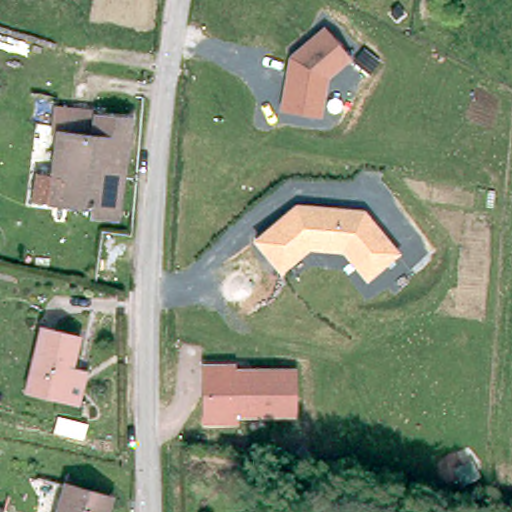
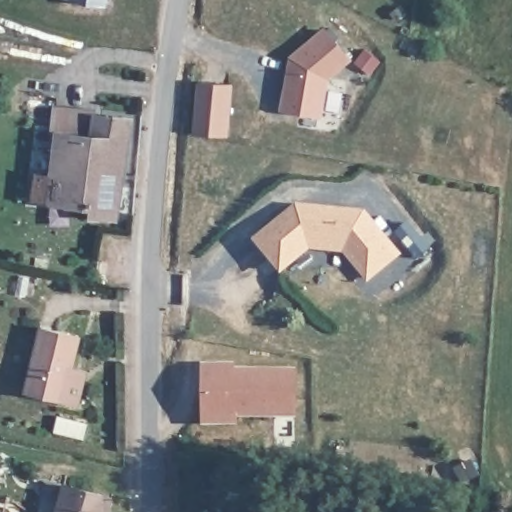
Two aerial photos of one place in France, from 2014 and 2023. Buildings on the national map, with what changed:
new [(107,5),(88,4),(73,0),(107,0),(107,5)]
unchanged [(288,58),(324,27),(352,58),(325,79),(321,117),(281,110),(288,58)]
new [(197,81),(232,83),(229,136),(194,135),(197,81)]
unchanged [(63,134),(97,138),(97,135),(56,131),(58,109),(100,113),(100,115),(99,120),(134,123),(122,218),(95,215),(96,207),(39,200),(42,172),(58,173),(63,134)]
unchanged [(295,202),(363,208),(400,253),(364,281),(343,255),(309,251),(278,275),(252,238),(295,202)]
unchanged [(71,402),(29,393),(44,326),(86,335),(78,368),(91,371),(83,405),(71,402)]
unchanged [(296,418),(238,418),(239,425),(202,424),(202,364),(235,361),(235,368),(297,368),(296,418)]
unchanged [(113,497),(109,512),(58,512),(65,484),(113,497)]

